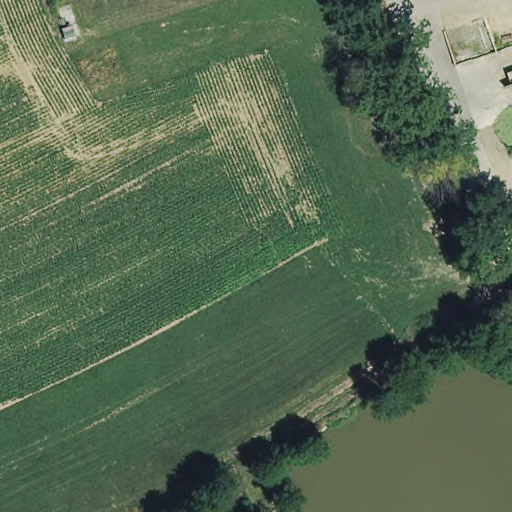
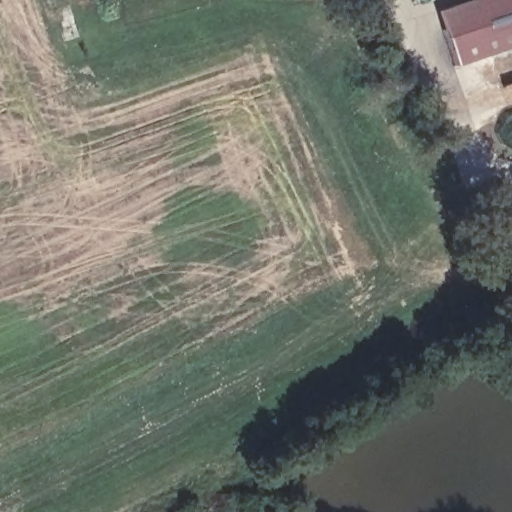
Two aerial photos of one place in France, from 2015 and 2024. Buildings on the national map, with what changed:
new [(456,65),(439,12),(472,0),(512,0),(512,46),(456,65)]
new [(512,83),(512,111),(508,112),(499,88),(512,83)]

